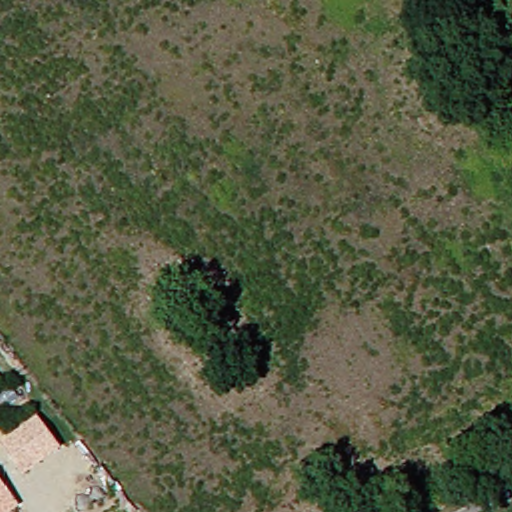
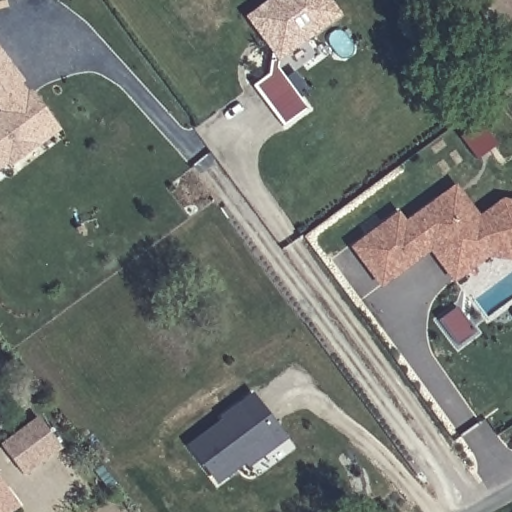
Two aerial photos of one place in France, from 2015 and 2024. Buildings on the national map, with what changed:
new [(331,0),(343,15),(279,62),(245,17),(269,0),(331,0)]
new [(21,84),(28,91),(30,89),(61,130),(8,168),(6,166),(0,171),(0,49),(25,82),(21,84)]
new [(478,160),(462,139),(482,124),(498,144),(478,160)]
new [(503,198),(512,200),(512,262),(490,258),(454,285),(432,255),(382,288),(351,247),(400,211),(407,221),(457,184),(480,215),(503,198)]
new [(476,333),(459,345),(441,319),(458,307),(476,333)]
new [(250,468),(247,465),(218,486),(188,446),(210,430),(208,427),(254,393),(288,440),(250,468)]
new [(39,417),(62,449),(23,476),(0,443),(0,442),(39,417)]
unchanged [(21,506),(13,512),(0,512),(0,479),(21,506)]

